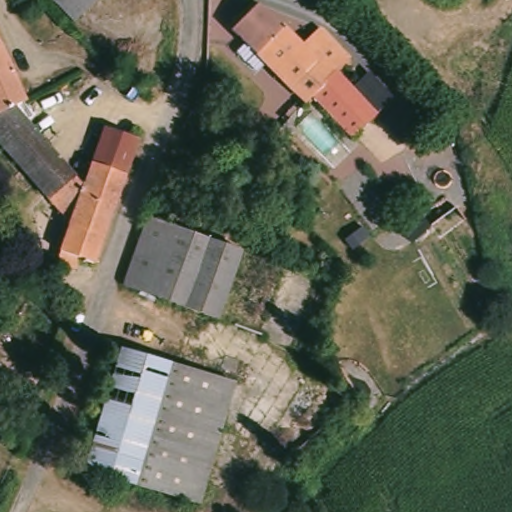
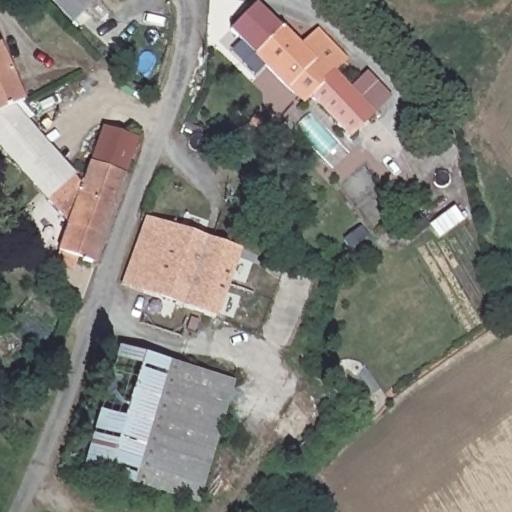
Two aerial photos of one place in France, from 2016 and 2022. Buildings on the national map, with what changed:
unchanged [(74,30),(47,0),(106,0),(74,30)]
unchanged [(125,2),(123,0),(127,0),(125,2)]
unchanged [(252,9),(274,30),(276,28),(297,49),(314,33),(344,64),(331,78),(371,120),(348,142),(308,101),(301,109),(253,62),(226,34),(252,9)]
unchanged [(26,105),(15,110),(1,116),(0,117),(0,49),(26,105)]
unchanged [(73,177),(49,205),(0,158),(0,117),(1,116),(15,110),(73,177)]
unchanged [(258,115),(278,133),(268,145),(247,127),(258,115)]
unchanged [(73,177),(84,189),(106,131),(137,143),(94,268),(80,264),(76,275),(58,268),(75,230),(49,205),(73,177)]
unchanged [(167,234),(171,222),(191,229),(188,240),(241,260),(218,327),(125,294),(140,251),(149,226),(167,234)]
unchanged [(288,277),(264,345),(218,327),(241,260),(288,277)]
unchanged [(201,507),(87,475),(123,355),(123,354),(133,357),(216,381),(237,387),(232,403),(201,507)]

